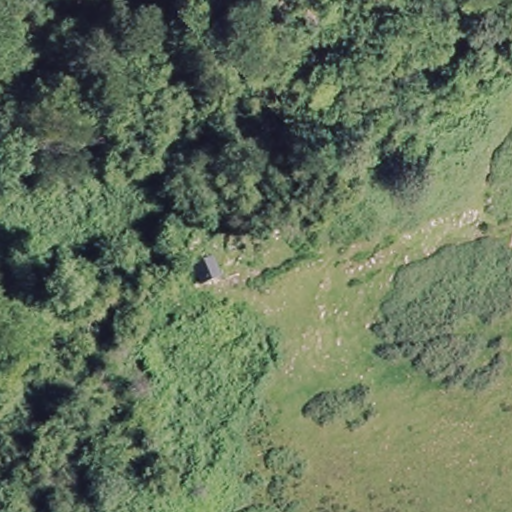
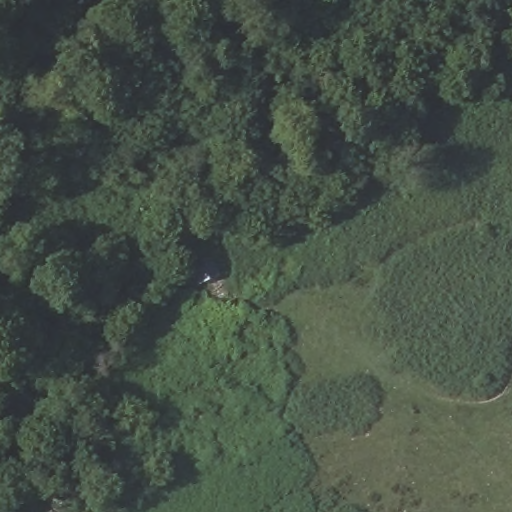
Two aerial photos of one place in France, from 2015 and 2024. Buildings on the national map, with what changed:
unchanged [(227,281),(203,286),(198,269),(218,260),(227,281)]

